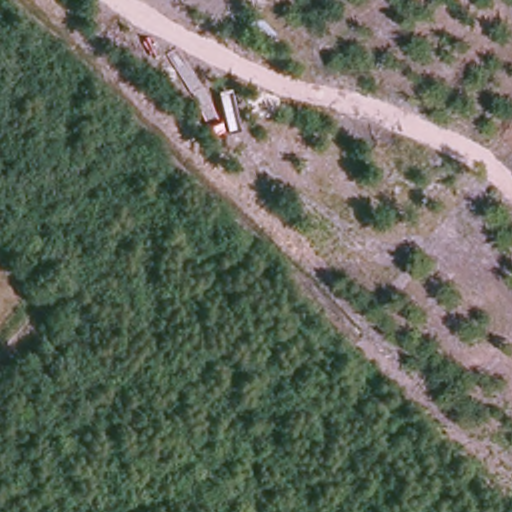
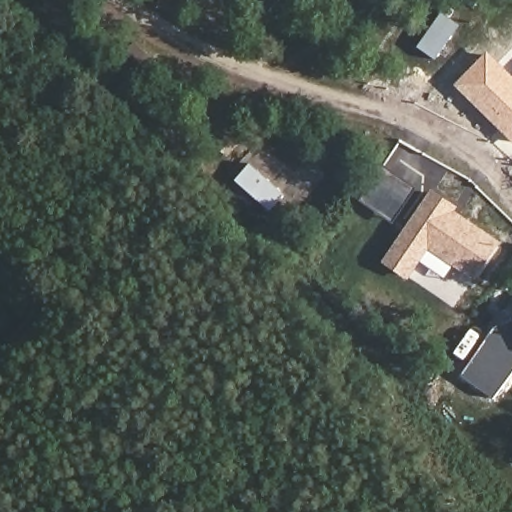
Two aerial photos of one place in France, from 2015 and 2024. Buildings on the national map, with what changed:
new [(418,47),(441,11),(461,24),(437,60),(418,47)]
new [(512,140),(454,85),(488,51),(512,75),(512,140)]
new [(427,248),(406,279),(382,262),(432,189),(459,206),(456,212),(502,241),(476,278),(427,248)]
new [(461,378),(496,327),(512,320),(512,373),(495,399),(461,378)]

